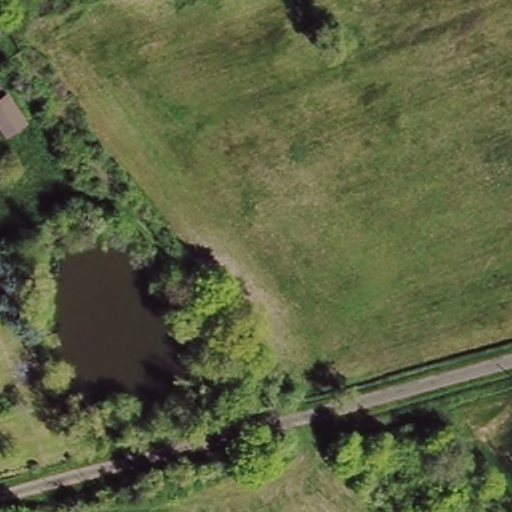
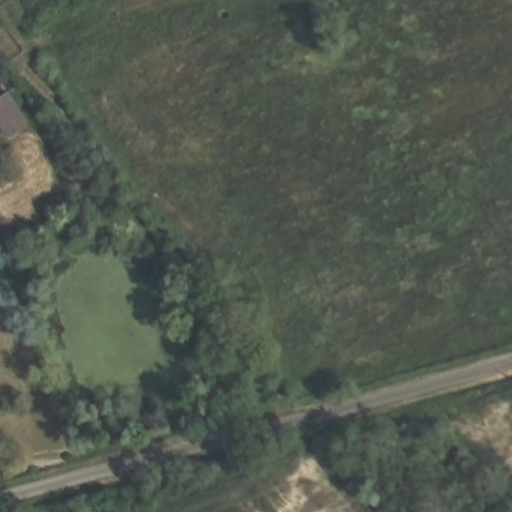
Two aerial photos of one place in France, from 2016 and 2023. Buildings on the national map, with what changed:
unchanged [(3,83),(23,111),(5,124),(0,116),(0,84),(3,83)]

